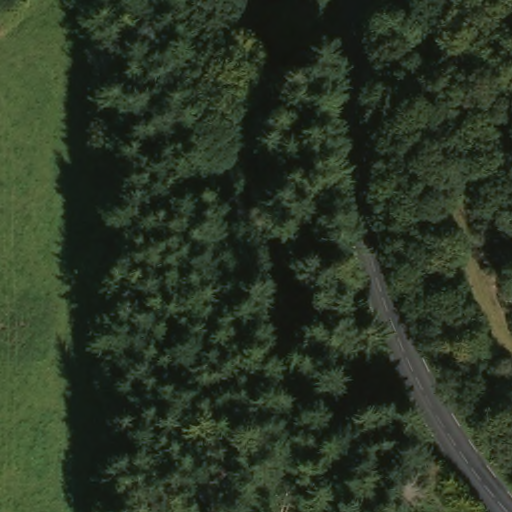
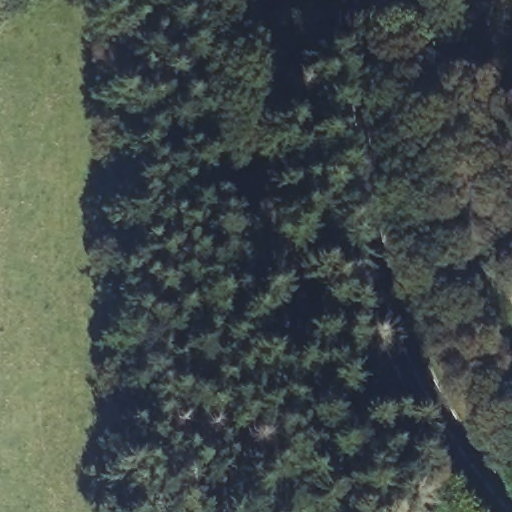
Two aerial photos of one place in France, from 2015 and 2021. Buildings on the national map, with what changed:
[]

